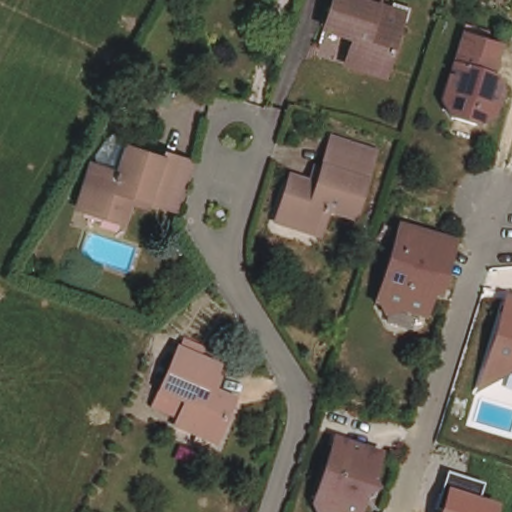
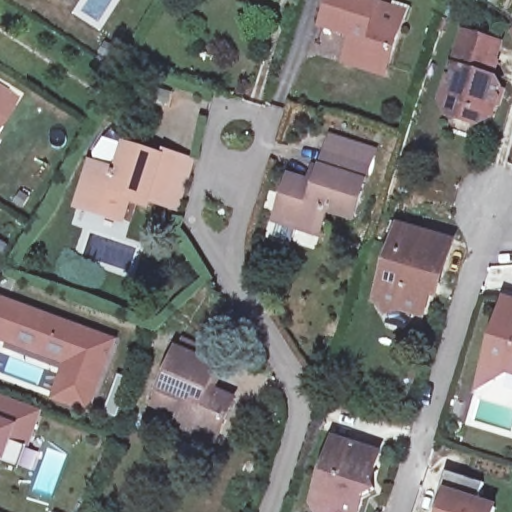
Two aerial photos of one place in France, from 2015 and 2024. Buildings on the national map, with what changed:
unchanged [(373,16),(397,23),(386,71),(345,60),(350,32),(324,26),(330,0),(377,0),(373,16)]
unchanged [(498,71),(499,82),(491,111),(476,117),(452,110),(443,96),(459,44),(463,29),(502,41),(497,55),(502,57),(498,71)]
new [(19,93),(0,124),(0,82),(19,93)]
unchanged [(155,146),(189,156),(173,210),(125,195),(117,219),(74,205),(88,163),(96,134),(118,141),(153,153),(155,146)]
unchanged [(329,236),(291,224),(305,181),(319,185),(325,166),(332,169),(341,140),(380,152),(358,219),(337,212),(329,236)]
unchanged [(452,240),(441,273),(436,272),(425,310),(405,304),(388,313),(382,296),(404,225),(452,240)]
unchanged [(509,371),(502,393),(475,385),(502,291),(512,295),(512,373),(509,371)]
new [(58,396),(61,385),(67,370),(6,348),(10,338),(0,334),(0,300),(2,299),(114,341),(93,398),(89,409),(58,396)]
unchanged [(174,344),(207,355),(202,373),(237,385),(224,427),(182,414),(181,418),(152,410),(157,396),(174,344)]
new [(43,411),(21,471),(0,463),(0,395),(43,411)]
unchanged [(370,473),(375,485),(363,492),(355,512),(352,512),(336,505),(324,512),(318,512),(313,497),(336,436),(378,452),(370,473)]
unchanged [(478,500),(499,506),(497,512),(439,512),(436,510),(447,473),(483,485),(478,500)]

